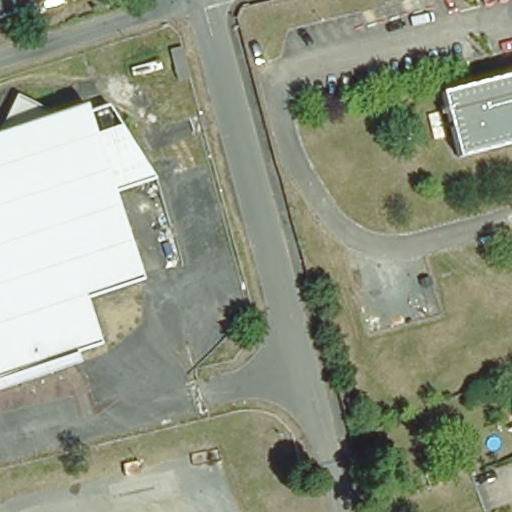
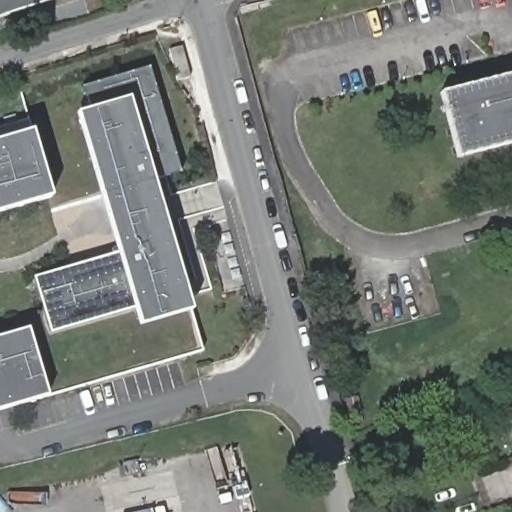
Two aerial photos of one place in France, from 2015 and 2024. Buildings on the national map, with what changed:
unchanged [(0,0),(58,0),(0,19),(0,0)]
demolished [(175,76),(167,54),(173,52),(178,50),(187,80),(181,81),(177,82),(175,76)]
new [(34,277),(117,254),(77,113),(88,110),(82,87),(149,66),(180,173),(153,181),(191,311),(139,325),(133,309),(49,334),(34,277)]
unchanged [(454,149),(439,85),(512,68),(512,135),(454,149)]
demolished [(0,92),(40,110),(68,101),(71,107),(91,101),(139,175),(96,190),(124,277),(67,296),(81,341),(54,350),(44,353),(47,363),(0,379),(0,92)]
new [(0,212),(0,140),(32,130),(50,197),(0,212)]
new [(47,396),(0,410),(0,337),(29,329),(47,396)]

